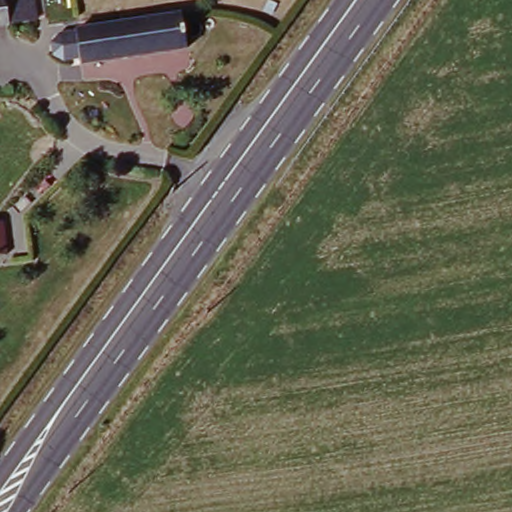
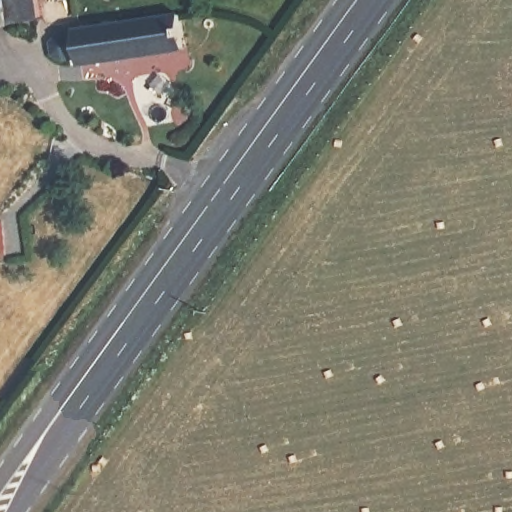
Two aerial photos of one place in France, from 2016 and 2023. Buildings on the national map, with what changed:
unchanged [(0,27),(0,0),(17,0),(20,24),(0,27)]
unchanged [(182,14),(187,46),(82,64),(77,31),(182,14)]
unchanged [(4,221),(9,254),(0,255),(0,222),(4,221)]

